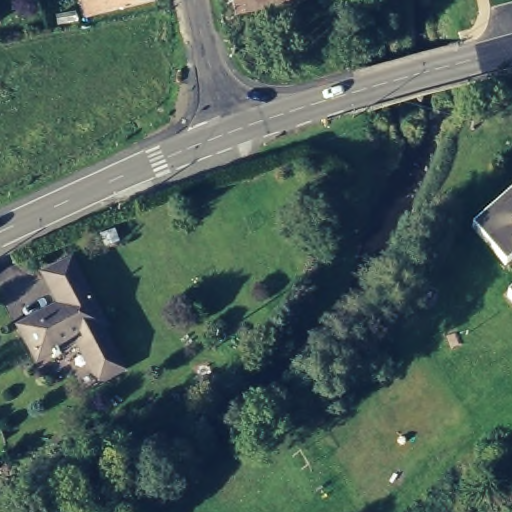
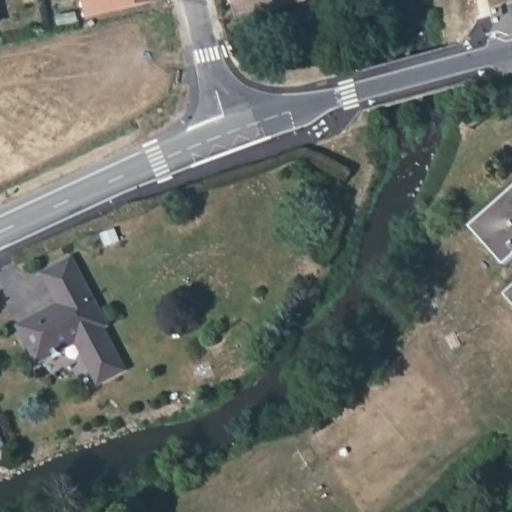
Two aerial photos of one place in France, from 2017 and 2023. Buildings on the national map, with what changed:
unchanged [(90,0),(139,0),(92,10),(90,0)]
unchanged [(233,0),(269,0),(235,8),(233,0)]
unchanged [(3,24),(0,25),(0,11),(3,24)]
unchanged [(512,260),(506,266),(471,230),(512,189),(512,260)]
unchanged [(72,255),(102,323),(98,324),(118,372),(93,384),(74,342),(35,359),(17,319),(58,300),(45,269),(72,255)]
unchanged [(512,293),(512,302),(508,298),(512,293)]

